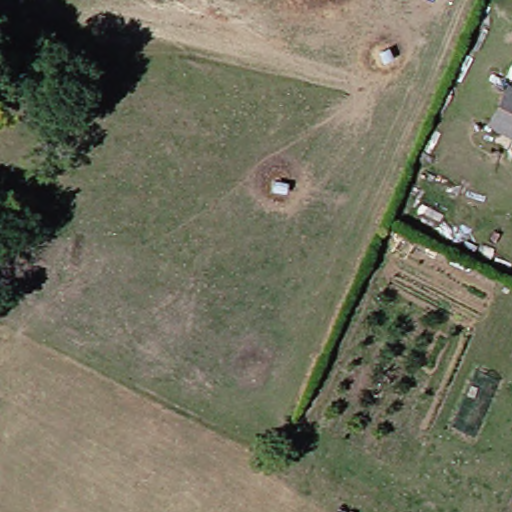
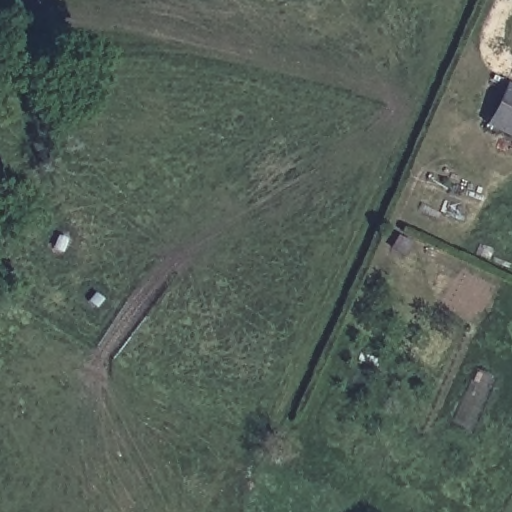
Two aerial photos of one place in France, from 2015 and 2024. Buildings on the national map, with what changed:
unchanged [(512,132),(486,121),(506,79),(512,81),(512,132)]

